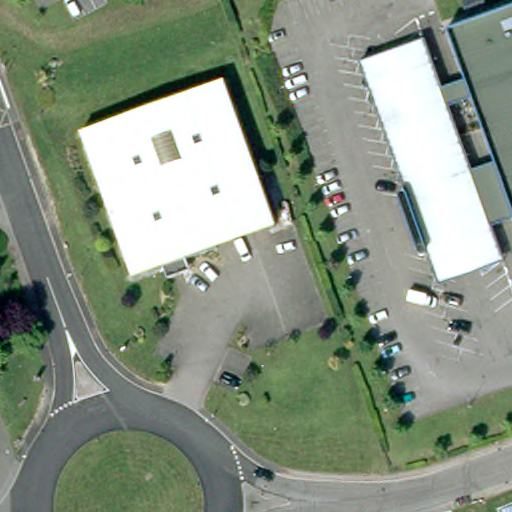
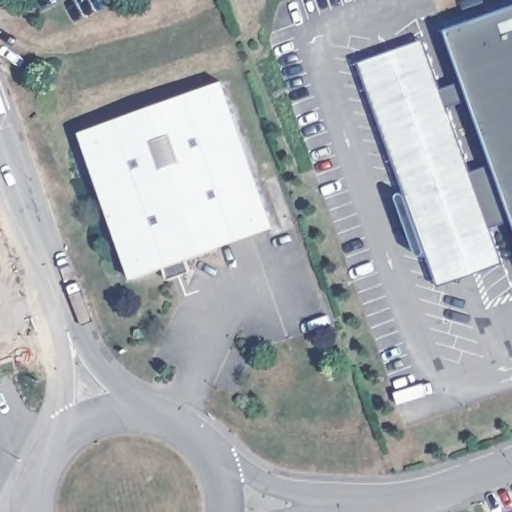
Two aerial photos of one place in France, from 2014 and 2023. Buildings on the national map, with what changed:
unchanged [(492,224),(504,259),(441,281),(362,59),(426,36),(443,86),(465,77),(447,26),(512,4),(512,217),(492,224)]
unchanged [(167,281),(163,270),(133,281),(80,135),(220,85),(268,215),(273,230),(216,250),(185,262),(188,273),(167,281)]

